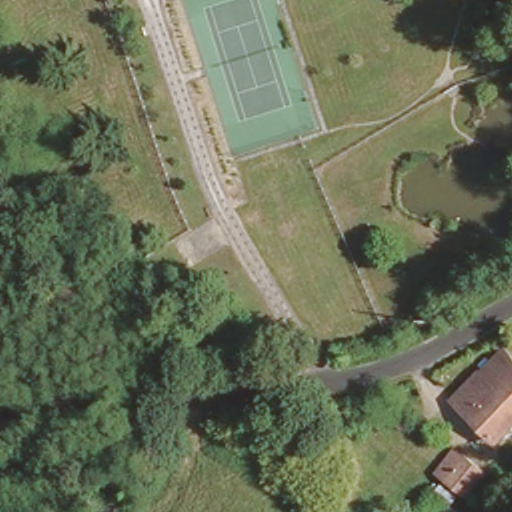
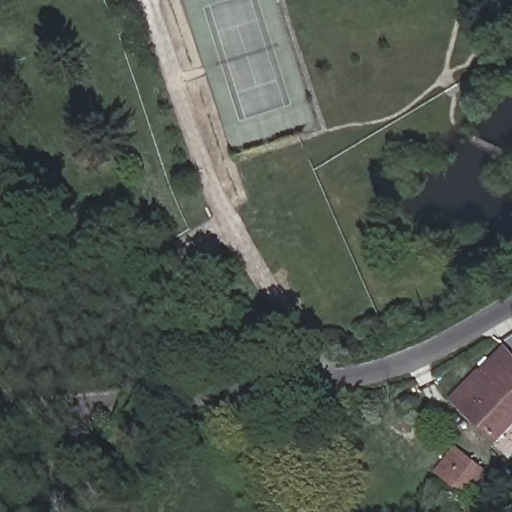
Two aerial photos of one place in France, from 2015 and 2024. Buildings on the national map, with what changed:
unchanged [(512,359),(512,415),(493,431),(458,394),(505,352),(512,359)]
unchanged [(461,494),(435,466),(456,446),(482,473),(461,494)]

